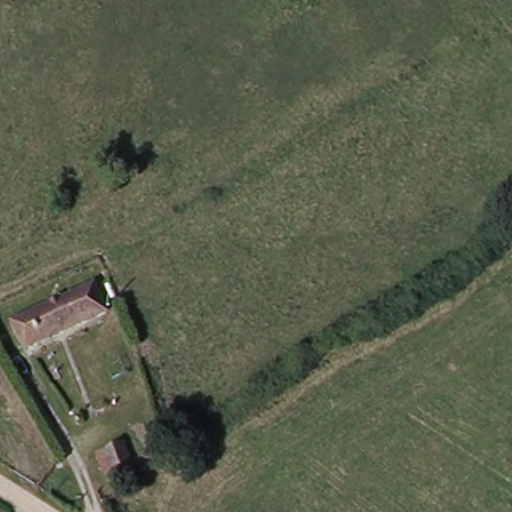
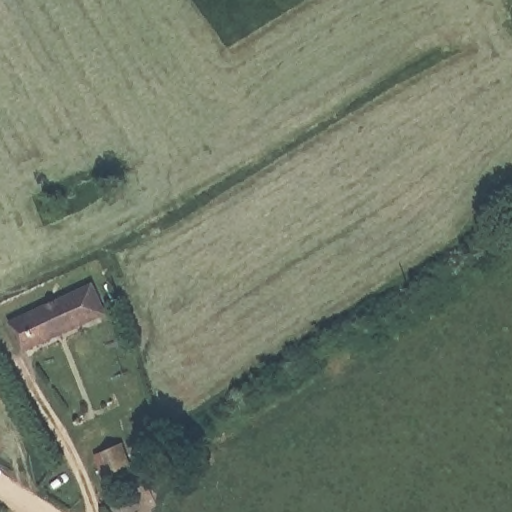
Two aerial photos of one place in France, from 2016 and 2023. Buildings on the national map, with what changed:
unchanged [(97,290),(108,310),(27,353),(16,331),(97,290)]
unchanged [(96,401),(101,410),(92,416),(86,408),(96,401)]
unchanged [(119,456),(130,477),(111,487),(101,467),(119,456)]

